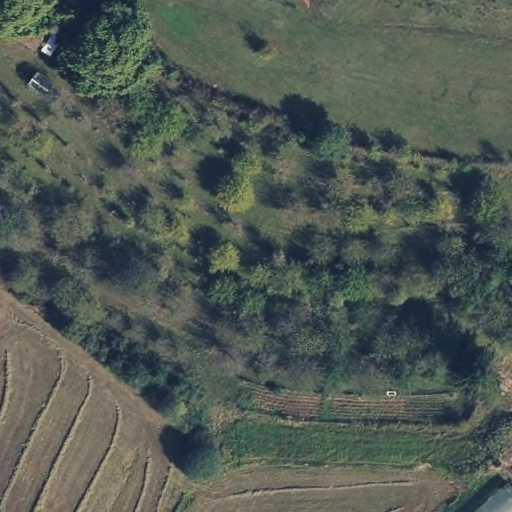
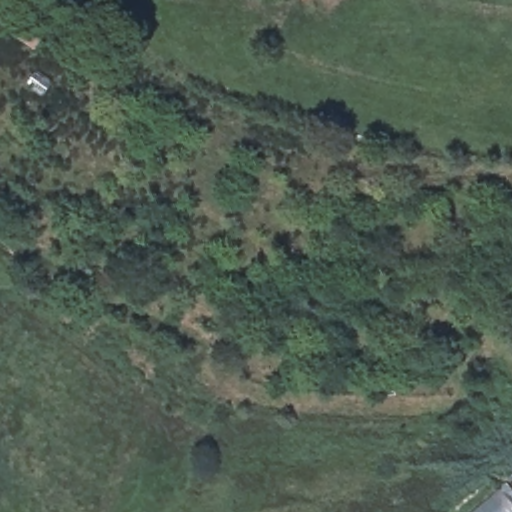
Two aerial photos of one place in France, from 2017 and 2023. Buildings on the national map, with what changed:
unchanged [(33,48),(4,26),(21,0),(28,0),(52,14),(33,48)]

